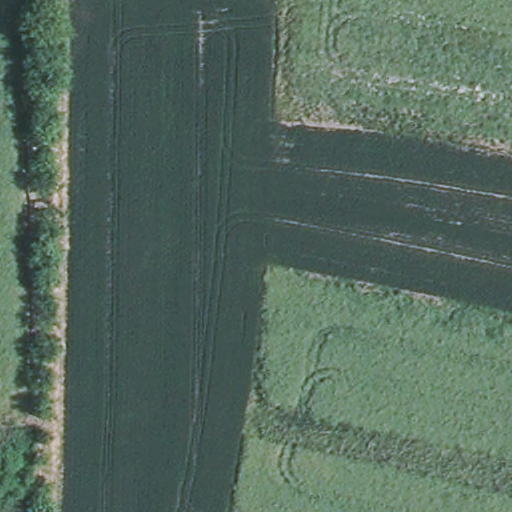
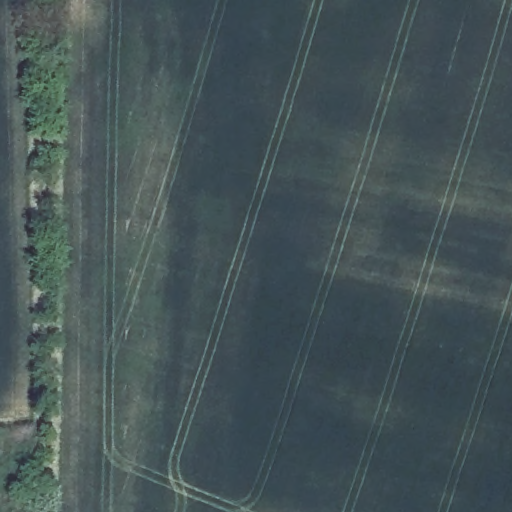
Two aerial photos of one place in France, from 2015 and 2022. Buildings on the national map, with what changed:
[]

